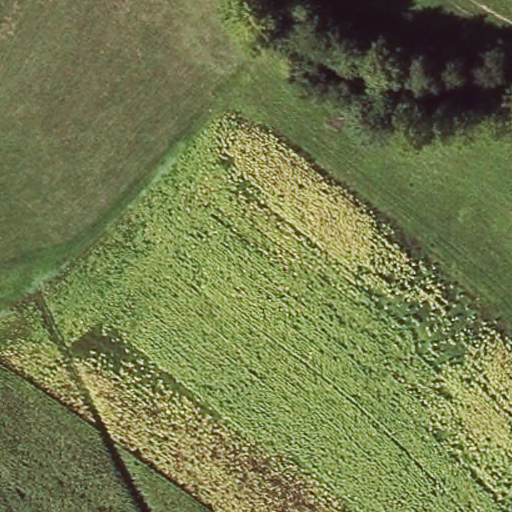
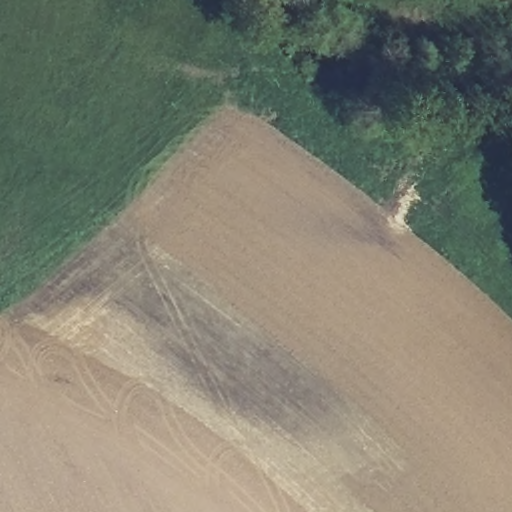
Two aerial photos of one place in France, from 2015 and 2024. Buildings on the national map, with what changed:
[]

